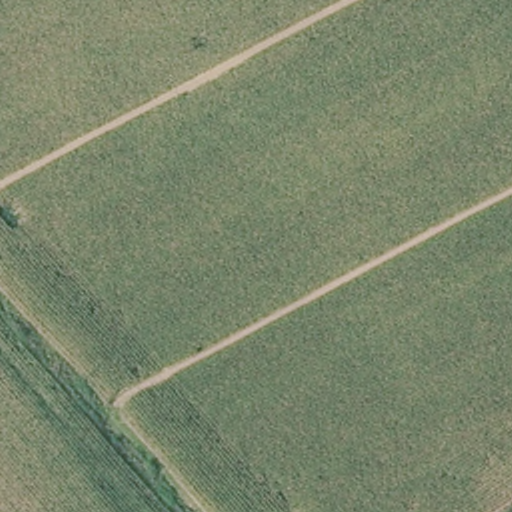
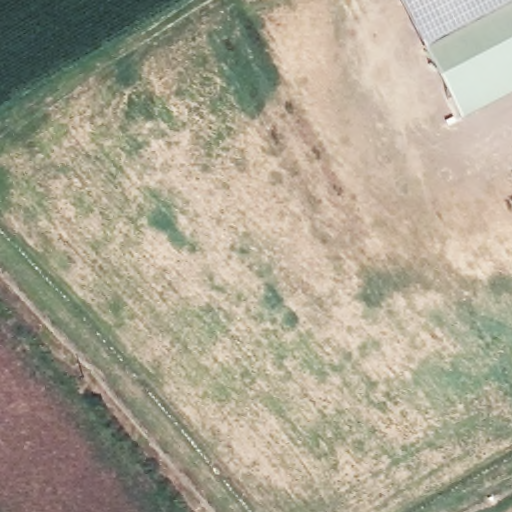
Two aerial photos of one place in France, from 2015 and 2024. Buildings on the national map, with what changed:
new [(403,0),(512,0),(512,1),(425,46),(400,1),(403,0)]
new [(423,50),(512,3),(512,74),(452,105),(423,50)]
new [(512,88),(458,116),(452,105),(512,74),(512,88)]

